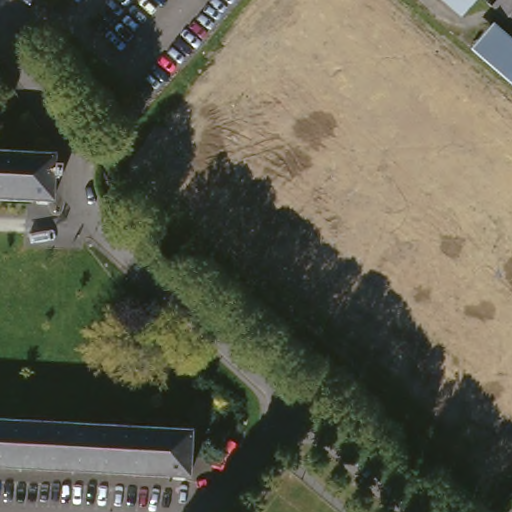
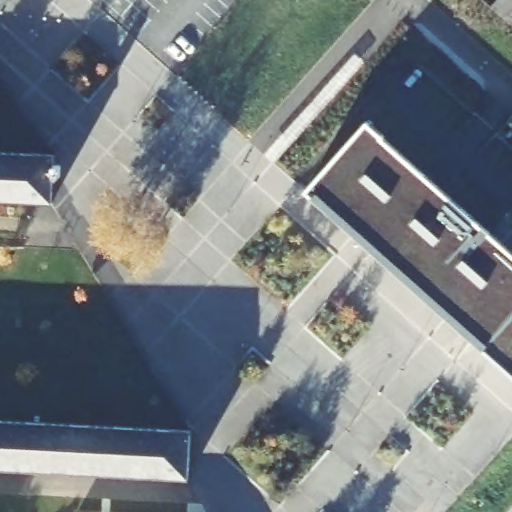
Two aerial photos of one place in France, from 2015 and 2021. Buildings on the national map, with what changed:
demolished [(453,0),(487,0),(473,17),(453,0)]
unchanged [(497,6),(501,0),(512,0),(512,19),(509,17),(497,6)]
demolished [(512,76),(480,48),(497,28),(498,28),(512,40),(512,76)]
new [(368,125),(512,254),(512,376),(307,194),(368,125)]
unchanged [(56,154),(52,201),(0,198),(0,150),(56,154)]
unchanged [(202,430),(200,478),(0,468),(0,420),(202,430)]

